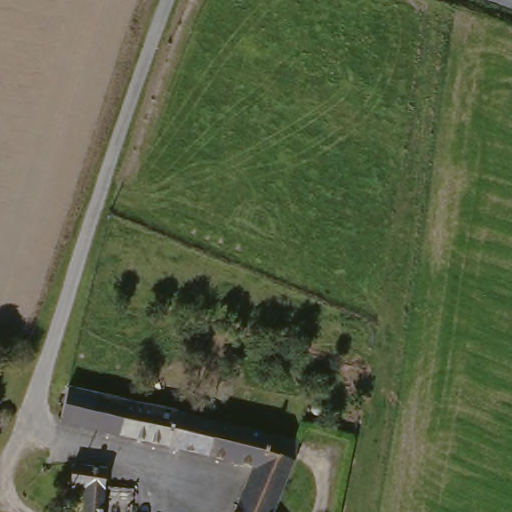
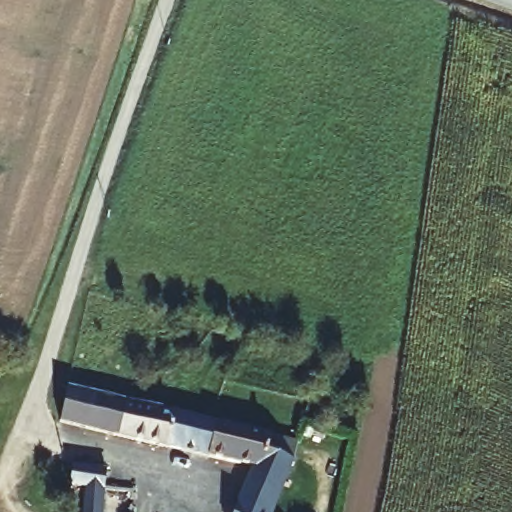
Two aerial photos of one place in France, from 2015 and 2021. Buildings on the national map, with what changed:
unchanged [(297,460),(300,462),(289,491),(278,512),(238,512),(259,468),(65,422),(74,387),(277,435),(302,441),(297,460)]
unchanged [(108,512),(88,512),(89,482),(75,481),(76,462),(111,466),(108,512)]

